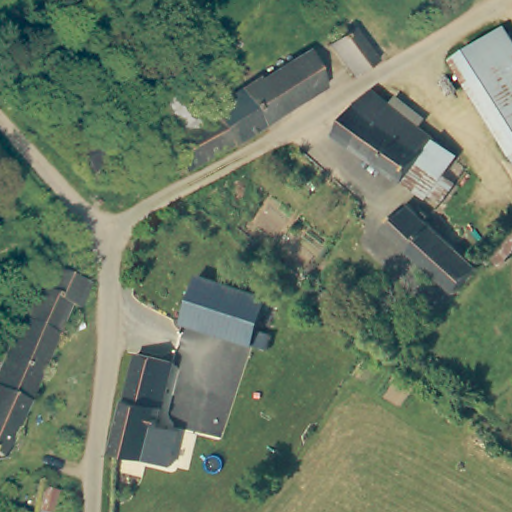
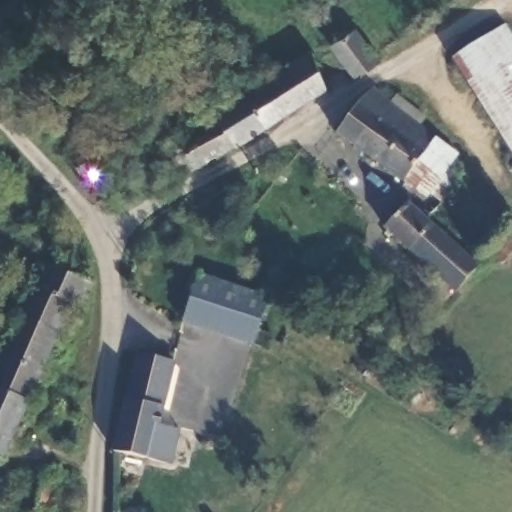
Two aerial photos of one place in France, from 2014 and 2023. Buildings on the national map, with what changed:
unchanged [(512,21),(512,145),(461,52),(512,21)]
unchanged [(371,62),(347,80),(325,44),(344,32),(347,30),(367,56),(371,62)]
unchanged [(235,147),(233,144),(218,121),(213,115),(212,114),(208,109),(250,83),(256,80),(258,82),(298,57),(308,51),(329,87),(307,101),(235,147)]
unchanged [(158,110),(153,98),(158,95),(153,87),(168,77),(173,85),(197,122),(179,134),(172,125),(162,108),(158,110)]
unchanged [(442,191),(439,195),(351,121),(380,95),(383,97),(401,112),(409,105),(438,128),(429,136),(464,165),(456,174),(469,185),(455,201),(442,191)]
unchanged [(140,112),(154,134),(163,130),(172,125),(179,134),(197,122),(212,114),(213,115),(218,121),(233,144),(184,172),(169,145),(150,155),(143,142),(134,147),(121,123),(140,112)]
unchanged [(65,150),(68,148),(99,130),(119,167),(95,181),(89,171),(82,175),(65,150)]
unchanged [(476,273),(450,296),(381,219),(407,197),(411,201),(418,195),(432,210),(425,216),(476,273)]
unchanged [(62,327),(27,307),(39,282),(45,285),(53,270),(90,285),(77,311),(70,308),(62,327)]
unchanged [(181,327),(197,278),(207,282),(266,300),(250,349),(205,335),(181,327)]
unchanged [(27,307),(62,327),(37,375),(22,366),(2,354),(12,337),(27,307)]
unchanged [(133,351),(163,358),(171,361),(155,425),(175,429),(166,465),(108,451),(131,358),(133,351)]
unchanged [(0,393),(0,359),(2,354),(22,366),(37,375),(22,405),(0,393)]
unchanged [(0,451),(0,393),(22,405),(0,451)]
unchanged [(22,482),(42,483),(41,490),(54,492),(51,512),(17,512),(22,482)]

